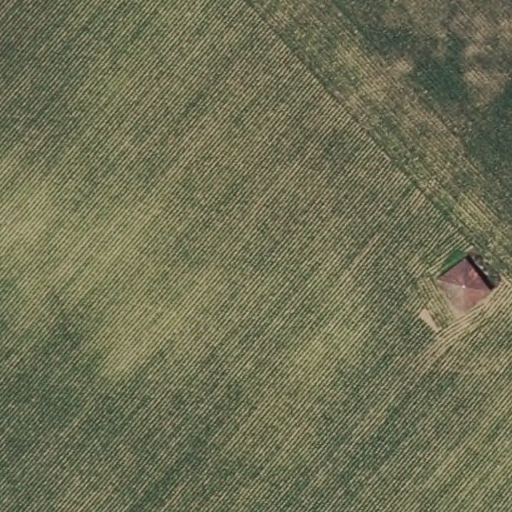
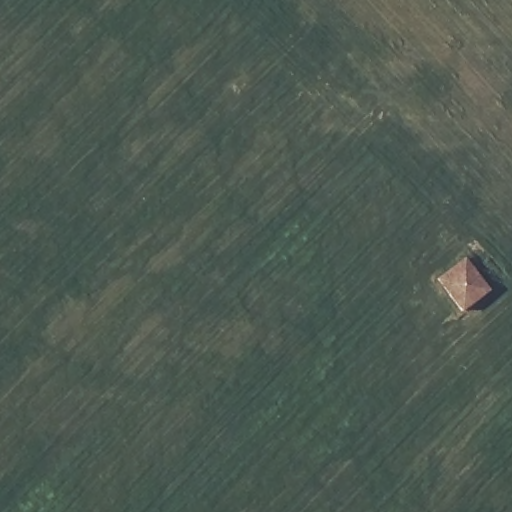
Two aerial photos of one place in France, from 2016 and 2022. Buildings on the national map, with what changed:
unchanged [(462,257),(488,289),(463,312),(435,280),(462,257)]

